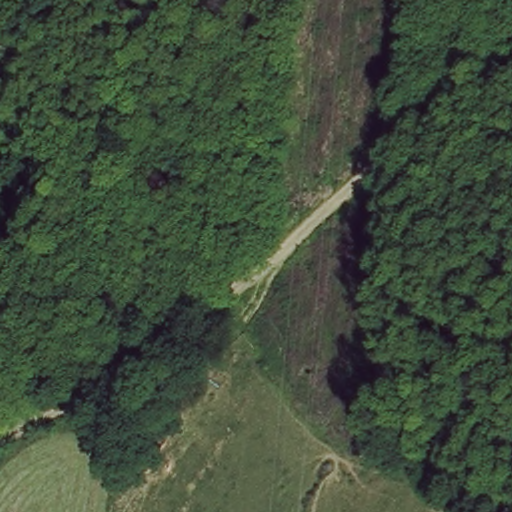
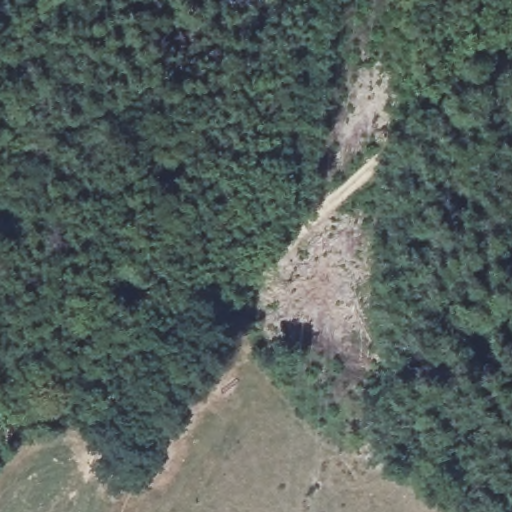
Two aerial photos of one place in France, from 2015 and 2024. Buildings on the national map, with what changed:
unchanged [(169,366),(181,391),(140,405),(129,380),(169,366)]

